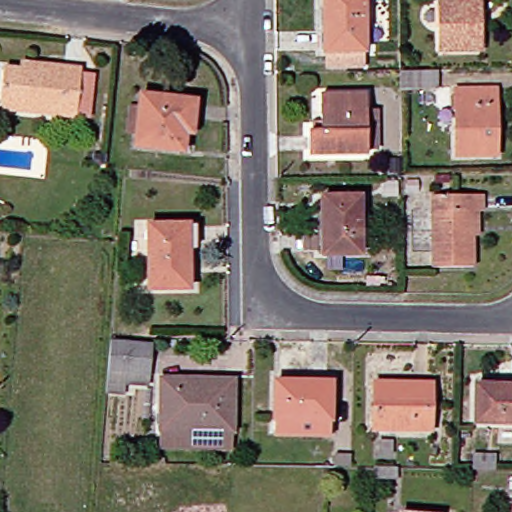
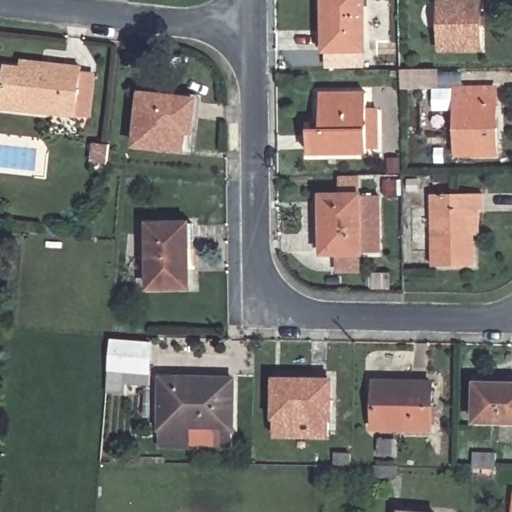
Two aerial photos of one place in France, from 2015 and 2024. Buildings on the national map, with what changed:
unchanged [(326,0),(366,0),(366,50),(327,50),(326,0)]
unchanged [(447,55),(447,0),(486,0),(486,55),(447,55)]
unchanged [(97,119),(83,117),(83,120),(6,112),(11,69),(27,71),(28,64),(54,67),(88,71),(87,79),(101,80),(97,119)]
unchanged [(437,69),(437,86),(402,87),(402,69),(437,69)]
unchanged [(498,154),(459,154),(459,89),(497,89),(498,154)]
unchanged [(382,149),(369,149),(369,154),(312,155),(311,130),(323,130),(323,93),(368,92),(368,109),(380,109),(382,149)]
unchanged [(199,99),(196,133),(187,132),(186,149),(138,144),(143,94),(199,99)]
unchanged [(409,192),(409,179),(419,179),(420,191),(409,192)]
unchanged [(436,265),(436,196),(484,195),(484,211),(484,234),(477,234),(477,265),(436,265)]
unchanged [(362,197),(363,254),(325,254),(323,196),(362,197)]
unchanged [(151,288),(150,223),(190,223),(190,286),(151,288)]
unchanged [(131,383),(130,393),(114,392),(118,340),(157,343),(155,372),(155,384),(131,383)]
unchanged [(236,379),(234,449),(162,448),(164,377),(236,379)]
unchanged [(334,381),(332,418),(332,435),(275,434),(275,417),(276,379),(334,381)]
unchanged [(433,383),(433,429),(376,428),(377,381),(433,383)]
unchanged [(477,384),(512,385),(512,422),(476,421),(477,384)]
unchanged [(394,454),(379,454),(379,439),(396,439),(394,454)]
unchanged [(335,463),(336,452),(354,452),(354,464),(335,463)]
unchanged [(497,453),(497,469),(475,468),(475,452),(497,453)]
unchanged [(400,469),(400,479),(376,479),(376,467),(400,467),(400,469)]

